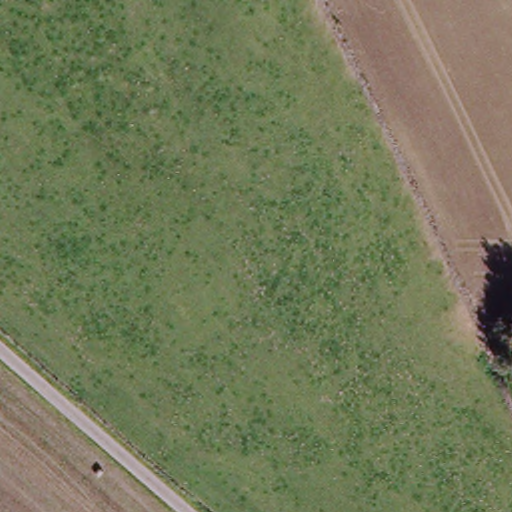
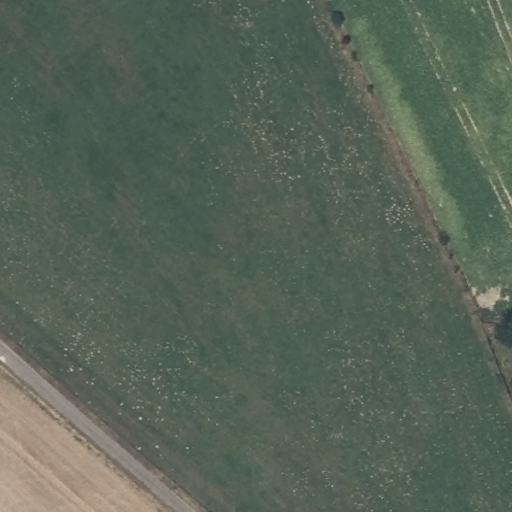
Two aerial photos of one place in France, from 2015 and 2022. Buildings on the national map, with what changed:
unchanged [(504,355),(512,353),(512,380),(509,381),(504,355)]

